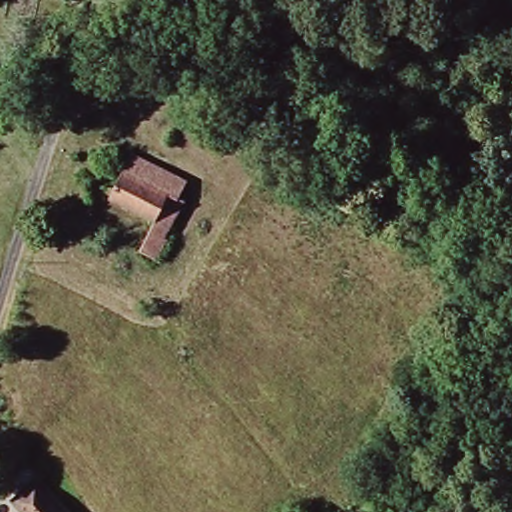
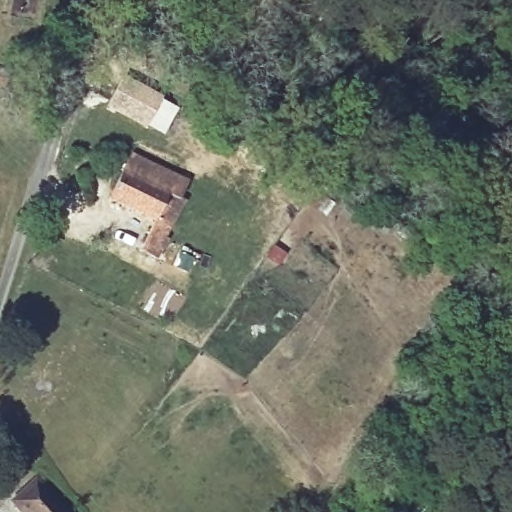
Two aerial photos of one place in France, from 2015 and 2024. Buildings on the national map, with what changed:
unchanged [(1,79),(0,79),(0,68),(1,68),(1,79)]
new [(160,139),(106,109),(123,78),(177,108),(160,139)]
unchanged [(174,213),(160,234),(164,237),(152,256),(138,248),(152,217),(106,195),(126,150),(183,180),(174,194),(181,199),(174,213)]
unchanged [(25,509),(11,495),(33,474),(68,512),(22,512),(25,509)]

